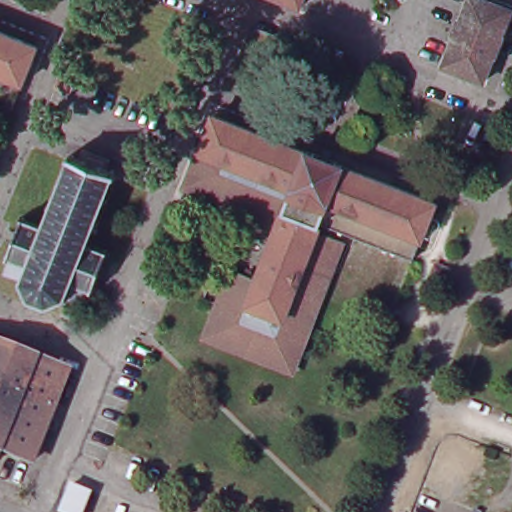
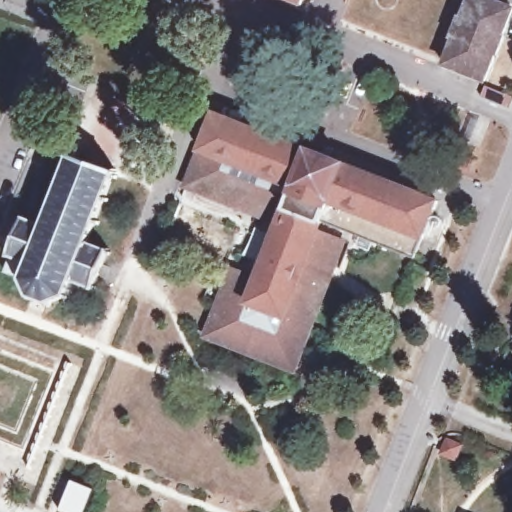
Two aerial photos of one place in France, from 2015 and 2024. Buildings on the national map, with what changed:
unchanged [(309,6),(292,0),(311,0),(309,6)]
unchanged [(456,39),(454,38),(462,17),(464,18),(471,0),(491,0),(512,9),(512,13),(504,35),(505,36),(498,55),(496,54),(486,81),(446,64),(456,39)]
demolished [(43,44),(21,102),(0,94),(0,28),(43,44)]
unchanged [(239,267),(266,277),(290,216),(239,196),(237,202),(193,185),(221,113),(326,154),(326,152),(331,144),(341,148),(338,156),(336,158),(443,201),(421,258),(329,222),(326,231),(351,241),(317,327),(301,369),(213,335),(226,303),(239,267)]
unchanged [(16,259),(13,258),(14,255),(12,254),(13,251),(15,252),(28,222),(24,221),(26,217),(29,218),(30,216),(33,217),(31,219),(50,227),(58,206),(54,205),(56,201),(59,202),(67,184),(63,183),(65,178),(68,180),(76,161),(73,160),(74,156),(75,156),(76,154),(78,155),(79,152),(83,153),(81,156),(119,171),(120,169),(123,169),(121,172),(123,173),(123,175),(124,176),(123,180),(119,179),(112,197),(115,199),(114,203),(110,201),(103,219),(106,221),(104,225),(101,224),(93,243),(112,251),(113,248),(116,249),(115,252),(118,253),(116,256),(114,255),(101,286),(104,287),(103,291),(100,290),(99,292),(96,291),(91,303),(76,298),(73,299),(71,295),(58,301),(58,306),(53,307),(53,301),(39,296),(36,300),(33,297),(36,293),(30,279),(26,281),(24,277),(11,272),(16,259)]
unchanged [(161,272),(173,277),(168,290),(155,285),(161,272)]
demolished [(76,369),(40,457),(10,446),(5,458),(0,456),(0,339),(76,369)]
unchanged [(93,490),(85,512),(65,512),(62,511),(73,481),(93,490)]

